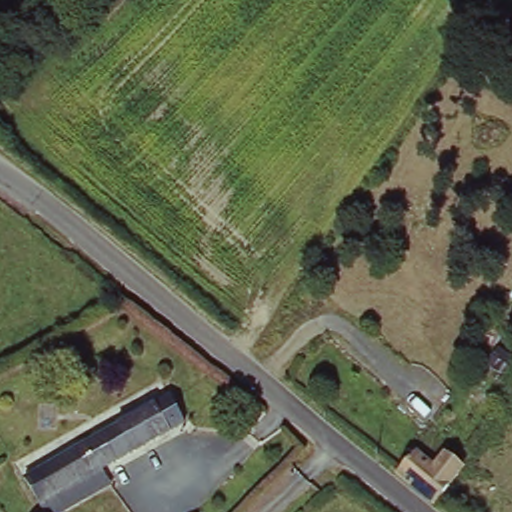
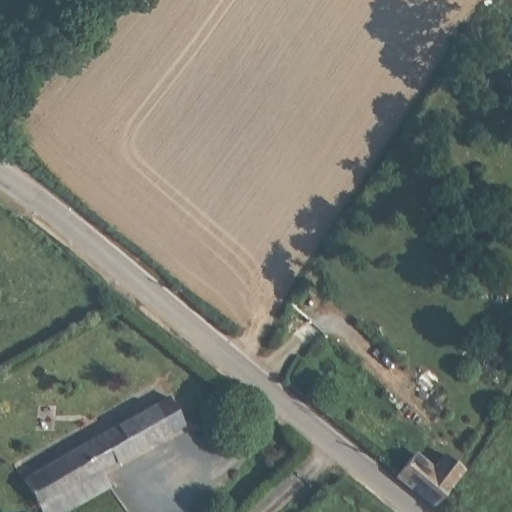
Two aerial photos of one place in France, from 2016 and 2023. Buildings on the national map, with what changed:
unchanged [(177,417),(106,456),(93,464),(30,498),(16,475),(162,394),(177,417)]
unchanged [(396,473),(415,452),(431,465),(443,450),(446,452),(461,466),(433,503),(396,473)]
unchanged [(93,464),(102,480),(40,512),(39,512),(30,498),(93,464)]

